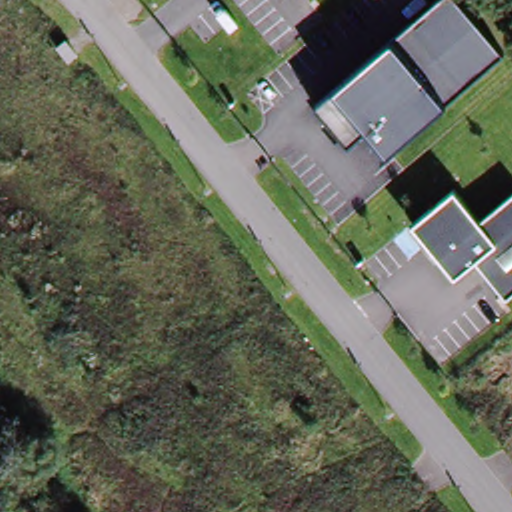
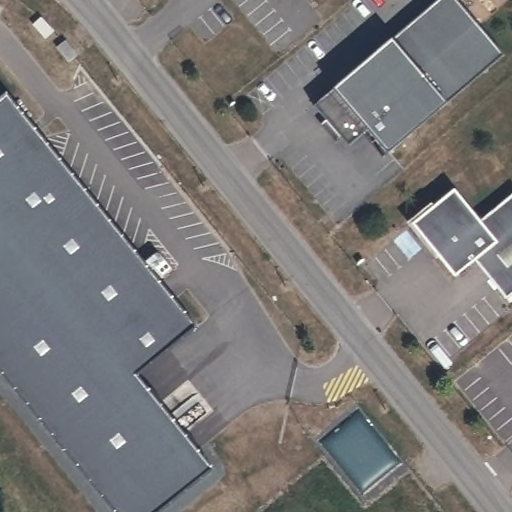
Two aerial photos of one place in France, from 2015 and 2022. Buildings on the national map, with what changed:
unchanged [(503,56),(446,106),(388,155),(367,129),(347,144),(317,107),(333,90),(391,40),(439,0),(457,0),(503,56)]
new [(65,45),(76,60),(67,67),(56,52),(65,45)]
new [(196,328),(137,376),(213,468),(158,512),(116,512),(0,371),(0,97),(6,92),(196,328)]
unchanged [(507,300),(476,262),(455,279),(411,223),(455,189),(480,222),(512,195),(512,296),(507,300)]

